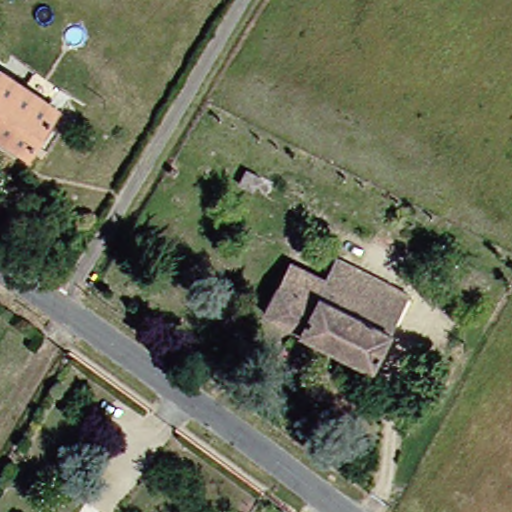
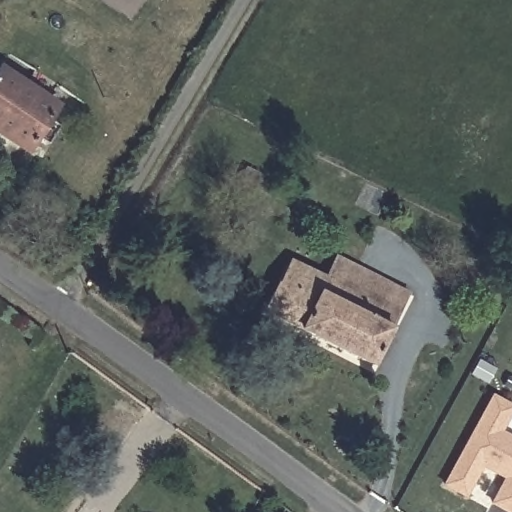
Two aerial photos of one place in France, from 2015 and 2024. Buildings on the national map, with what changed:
unchanged [(46,104),(38,117),(49,124),(36,144),(25,137),(16,151),(0,141),(0,74),(46,104)]
unchanged [(174,173),(168,170),(170,166),(176,169),(174,173)]
unchanged [(261,174),(252,190),(238,182),(247,166),(261,174)]
unchanged [(252,311),(280,259),(315,275),(326,255),(399,292),(362,366),(252,311)]
new [(506,474),(481,463),(466,490),(444,479),(492,392),(512,403),(512,406),(500,428),(512,435),(512,512),(508,512),(491,502),(506,474)]

